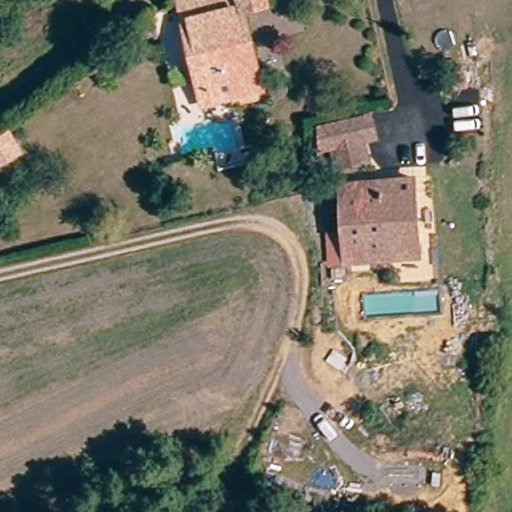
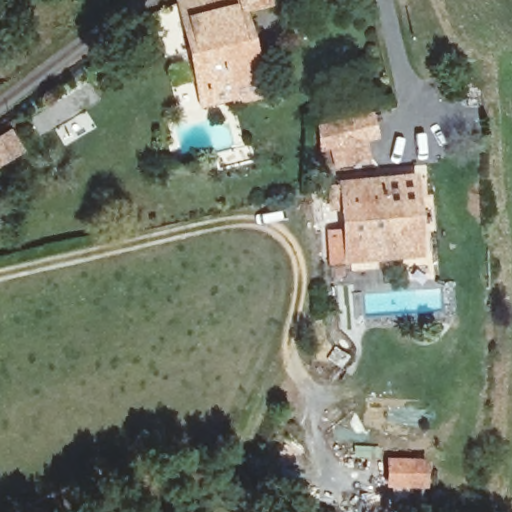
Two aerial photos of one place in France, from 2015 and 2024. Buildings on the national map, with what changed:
unchanged [(200,88),(181,0),(270,0),(270,2),(244,8),(248,26),(253,48),(259,75),(200,88)]
unchanged [(264,95),(237,101),(235,95),(204,102),(200,88),(259,75),(264,95)]
unchanged [(341,161),(339,143),(335,144),(326,144),(326,118),(377,110),(378,116),(380,135),(373,136),(376,155),(341,161)]
unchanged [(14,145),(0,153),(0,132),(6,129),(14,145)]
unchanged [(328,260),(325,230),(342,229),(340,206),(329,207),(328,192),(328,184),(339,184),(339,181),(412,177),(417,255),(328,260)]
new [(387,490),(387,461),(427,460),(427,490),(422,490),(422,502),(406,502),(406,490),(387,490)]

